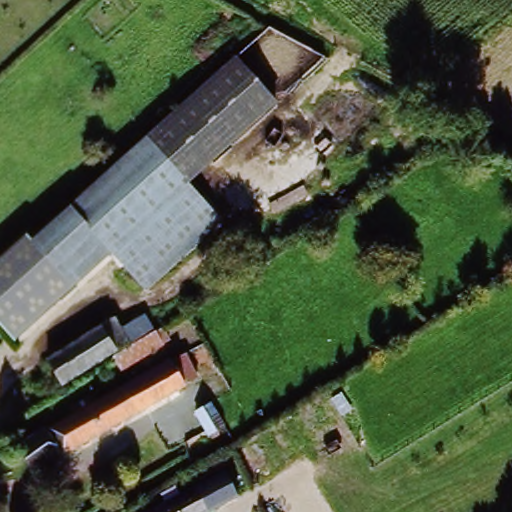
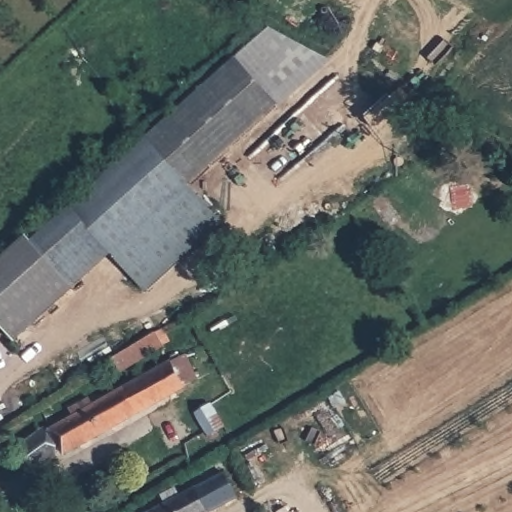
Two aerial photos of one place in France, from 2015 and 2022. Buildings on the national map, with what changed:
unchanged [(107,247),(69,282),(31,241),(265,25),(328,57),(180,180),(107,247)]
unchanged [(180,180),(214,217),(140,284),(107,247),(180,180)]
unchanged [(37,247),(69,282),(107,247),(112,253),(71,290),(12,341),(0,326),(0,257),(25,234),(31,241),(37,247)]
unchanged [(46,358),(117,317),(125,325),(149,314),(167,346),(120,372),(112,361),(61,386),(46,358)]
unchanged [(43,440),(175,363),(190,355),(204,374),(187,384),(55,461),(43,440)]
unchanged [(204,426),(190,406),(205,398),(218,416),(204,426)]
unchanged [(31,442),(45,464),(22,479),(8,456),(31,442)]
unchanged [(165,502),(177,496),(182,503),(217,483),(232,474),(243,493),(229,501),(210,512),(166,512),(169,510),(165,502)]

